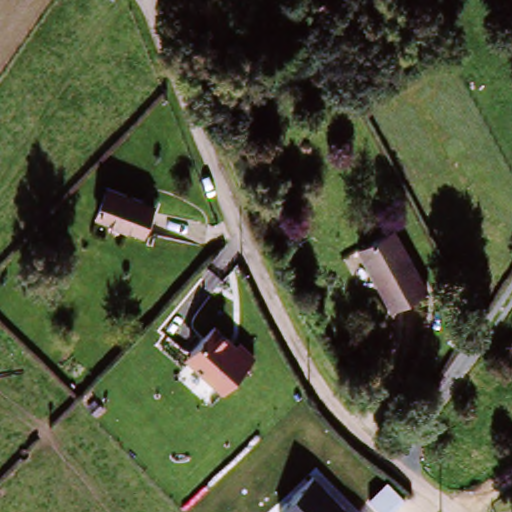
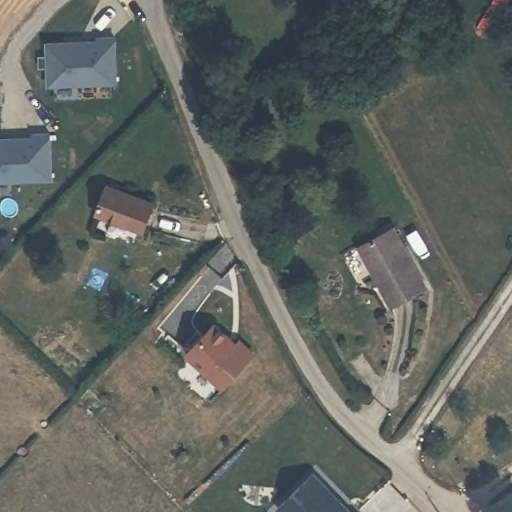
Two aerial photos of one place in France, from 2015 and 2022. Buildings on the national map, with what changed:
new [(48,43),(100,43),(101,39),(118,39),(118,86),(47,85),(48,43)]
new [(38,136),(55,136),(55,182),(0,182),(0,140),(38,140),(38,136)]
unchanged [(152,203),(143,229),(97,213),(106,186),(152,203)]
unchanged [(391,226),(428,289),(390,312),(363,260),(349,269),(342,255),(391,226)]
unchanged [(234,338),(239,334),(259,356),(221,391),(184,354),(216,323),(234,338)]
unchanged [(350,512),(283,512),(278,507),(312,474),(350,512)]

